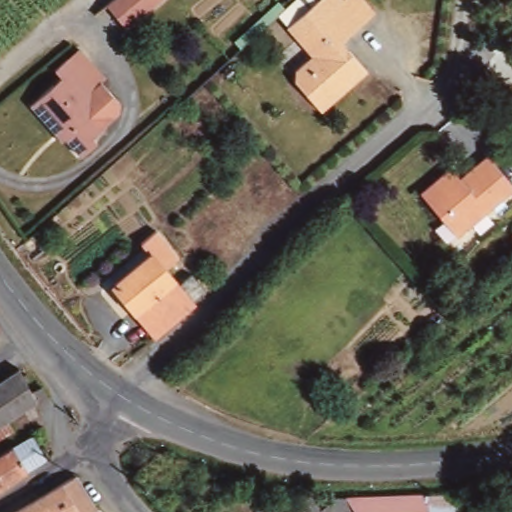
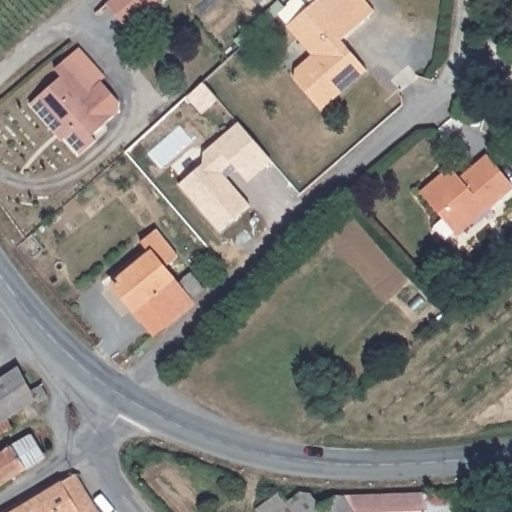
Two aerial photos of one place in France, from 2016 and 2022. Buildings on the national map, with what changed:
unchanged [(105,10),(116,0),(160,0),(127,32),(105,10)]
unchanged [(366,73),(337,98),(334,94),(317,109),(292,83),(293,72),(310,59),(294,40),(284,29),(316,0),(340,0),(361,0),(379,20),(346,50),(366,73)]
unchanged [(55,69),(67,59),(80,48),(106,79),(101,83),(116,102),(115,111),(101,123),(101,124),(90,133),(92,136),(76,150),(56,125),(50,129),(28,103),(61,76),(55,69)]
new [(205,154),(240,123),(273,161),(250,182),(238,169),(228,179),(252,205),(223,232),(181,186),(205,164),(205,154)]
unchanged [(512,189),(456,235),(420,192),(449,168),(458,178),(462,174),(486,156),(512,187),(512,189)]
unchanged [(43,246),(28,259),(22,251),(16,242),(30,230),(43,246)]
unchanged [(512,235),(512,252),(511,253),(503,242),(512,235)]
unchanged [(208,296),(194,307),(199,313),(159,344),(116,292),(154,262),(145,251),(161,239),(183,266),(169,277),(183,293),(196,282),(208,296)]
unchanged [(0,437),(0,382),(23,367),(36,391),(46,386),(53,398),(42,403),(40,400),(12,418),(18,429),(6,434),(0,437)]
unchanged [(17,446),(37,434),(51,456),(31,469),(10,483),(0,489),(0,458),(17,446)]
unchanged [(93,511),(94,512),(14,512),(16,511),(46,493),(49,491),(67,480),(69,482),(73,480),(78,489),(81,493),(87,503),(91,507),(93,511)]
unchanged [(281,496),(288,507),(299,498),(310,499),(320,512),(260,512),(281,496)]
unchanged [(335,500),(349,500),(388,499),(427,499),(441,498),(457,497),(458,512),(320,512),(335,500)]

